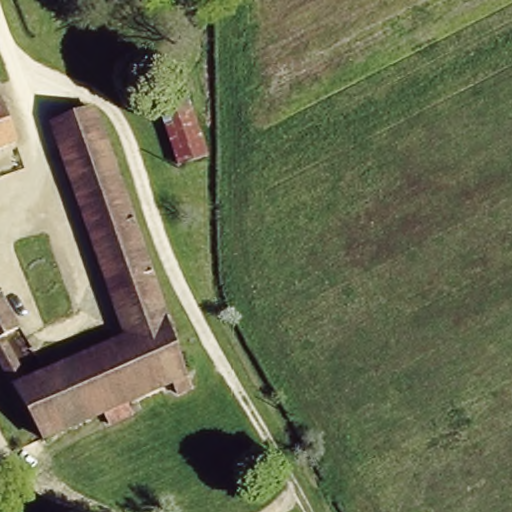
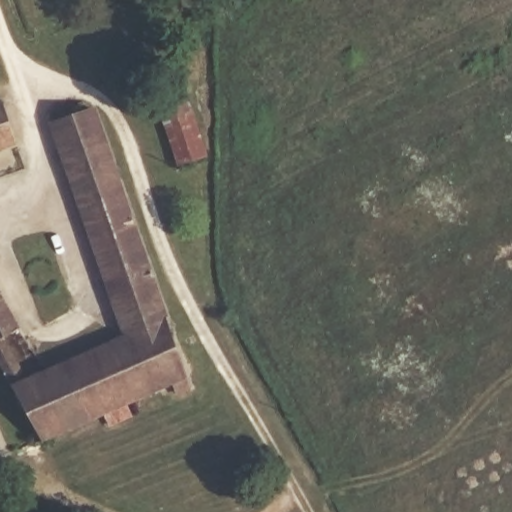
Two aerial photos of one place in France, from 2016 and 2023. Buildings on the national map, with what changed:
unchanged [(180,90),(212,159),(185,172),(153,102),(180,90)]
unchanged [(0,146),(0,103),(8,100),(22,137),(0,146)]
unchanged [(89,102),(166,310),(120,332),(47,116),(89,102)]
unchanged [(166,310),(187,367),(176,373),(182,384),(167,392),(162,380),(125,397),(132,410),(109,422),(100,409),(70,423),(37,439),(0,370),(0,298),(15,327),(2,333),(26,378),(120,332),(166,310)]

